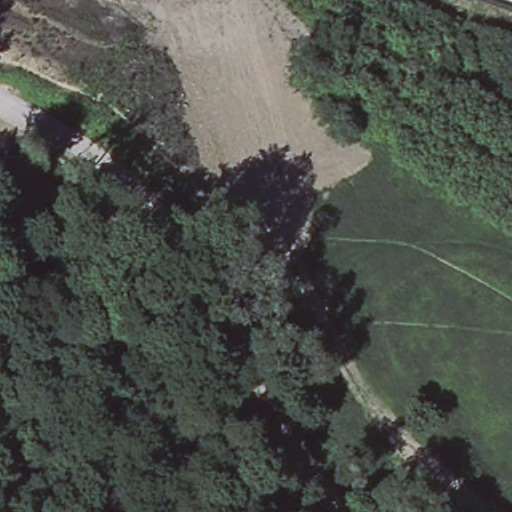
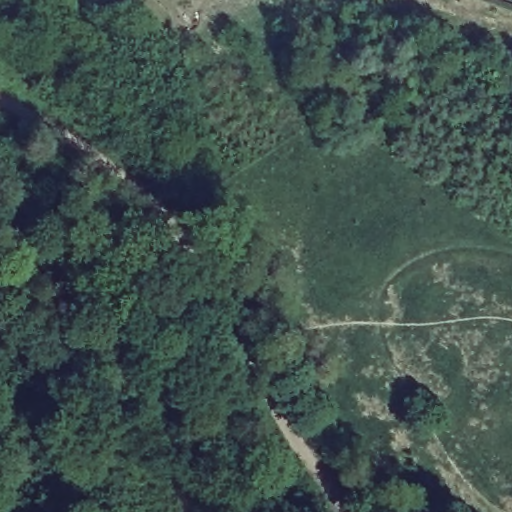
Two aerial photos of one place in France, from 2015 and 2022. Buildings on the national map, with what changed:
[]

